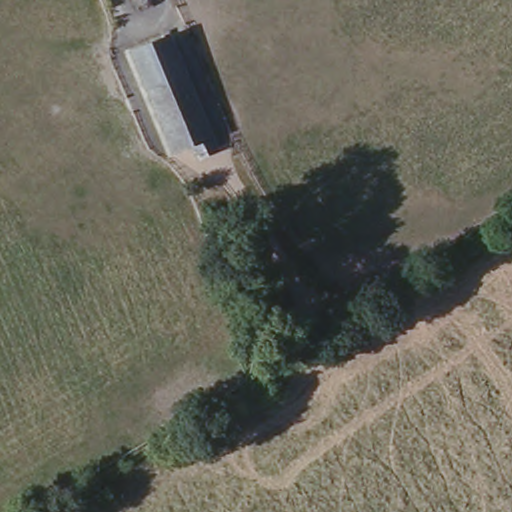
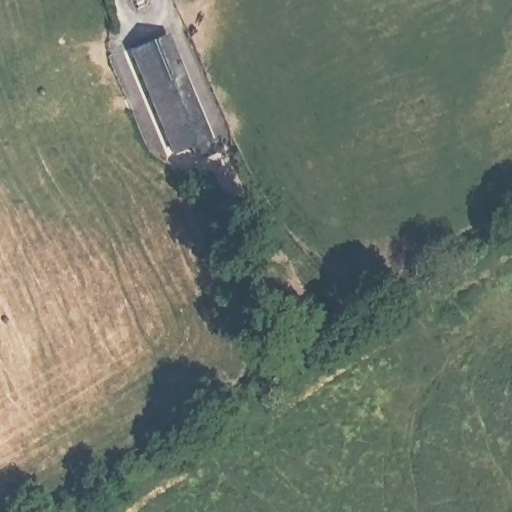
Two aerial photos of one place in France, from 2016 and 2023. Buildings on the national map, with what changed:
unchanged [(175,42),(223,157),(203,166),(194,151),(179,157),(137,57),(153,51),(175,42)]

